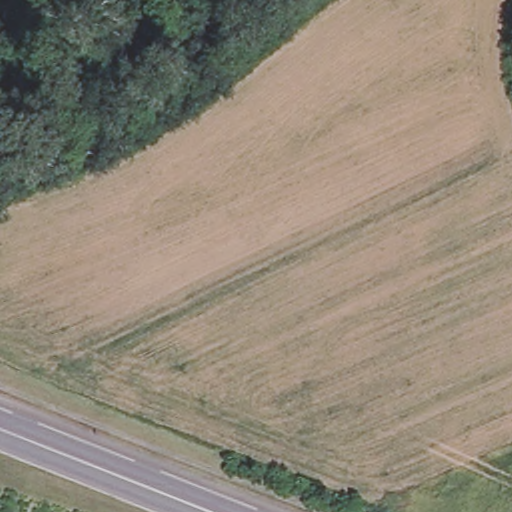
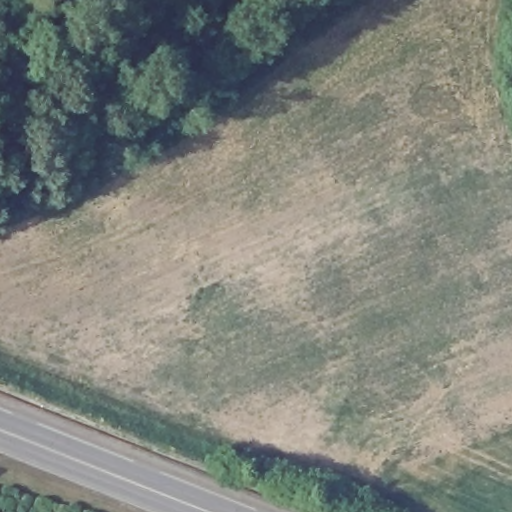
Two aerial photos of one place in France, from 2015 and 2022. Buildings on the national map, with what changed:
[]

